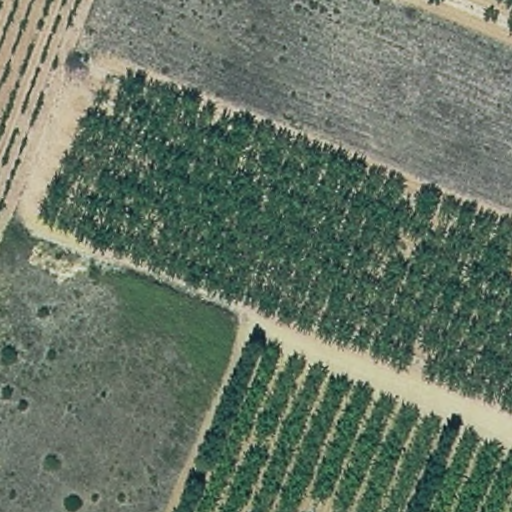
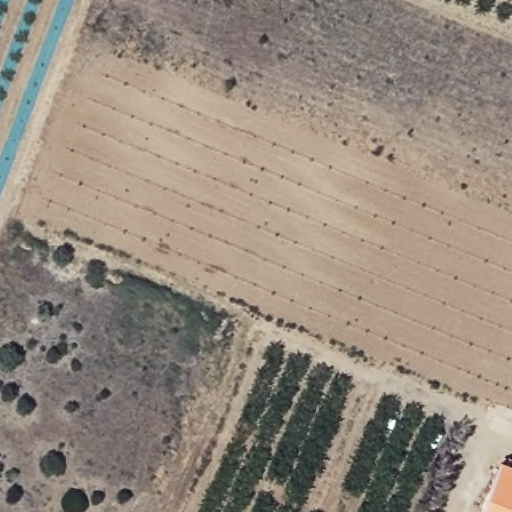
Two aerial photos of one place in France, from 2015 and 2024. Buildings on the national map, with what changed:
new [(481,512),(501,463),(512,467),(512,512),(481,512)]

